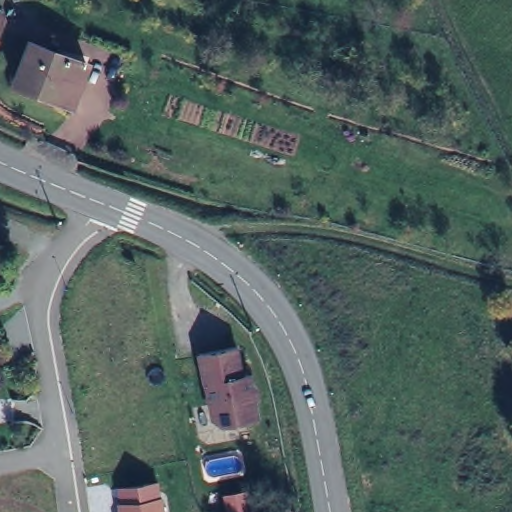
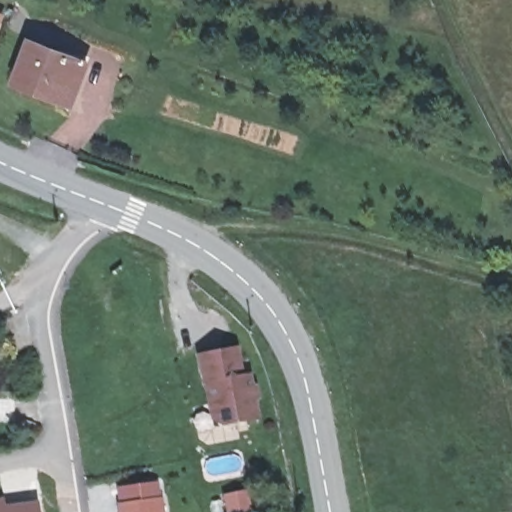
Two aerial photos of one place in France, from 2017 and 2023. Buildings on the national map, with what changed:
unchanged [(6,85),(22,45),(77,65),(61,105),(6,85)]
unchanged [(237,376),(244,375),(250,420),(216,427),(209,421),(203,385),(201,385),(196,355),(233,348),(237,376)]
new [(6,505),(40,500),(41,512),(0,512),(0,498),(5,497),(6,505)]
unchanged [(117,503),(160,497),(162,512),(118,512),(117,503)]

